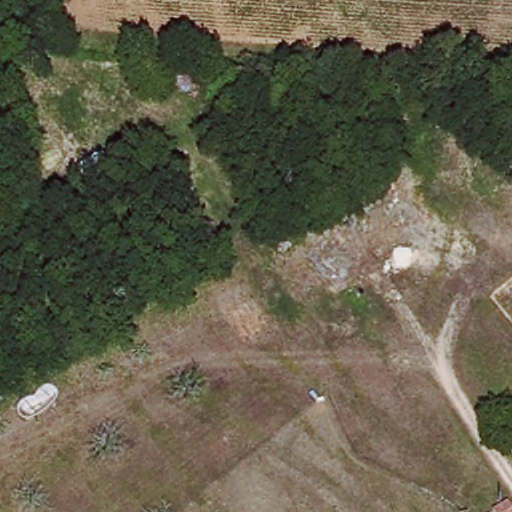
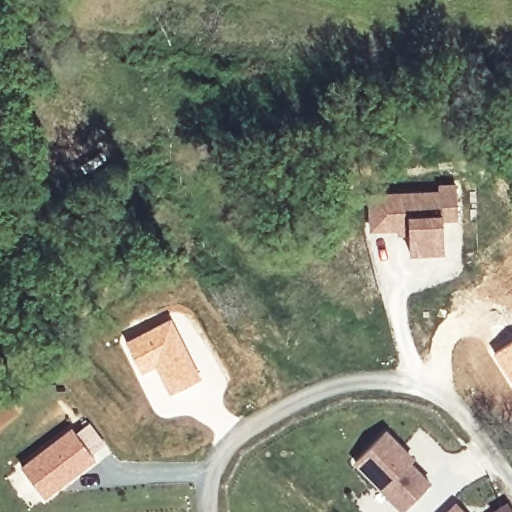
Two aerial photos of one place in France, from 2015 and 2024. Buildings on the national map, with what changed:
new [(441,192),(441,186),(457,185),(460,217),(445,217),(446,251),(412,252),(411,232),(406,227),(373,229),(372,195),(441,192)]
new [(170,318),(200,377),(169,393),(153,366),(141,372),(124,341),(170,318)]
new [(512,339),(512,387),(490,353),(512,339)]
new [(75,426),(98,455),(48,494),(25,465),(75,426)]
new [(386,430),(404,448),(400,452),(431,482),(405,508),(356,460),(386,430)]
new [(457,502),(468,512),(447,512),(457,502)]

